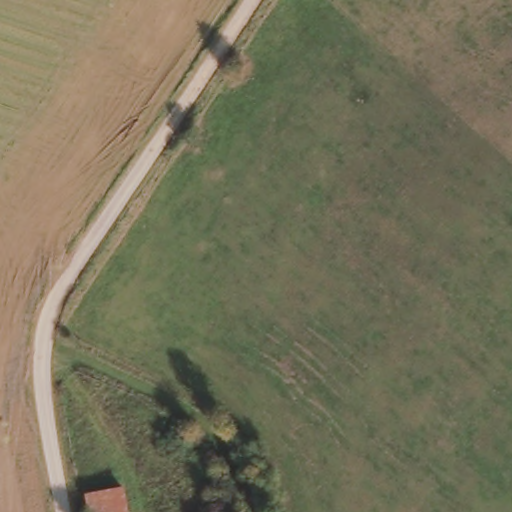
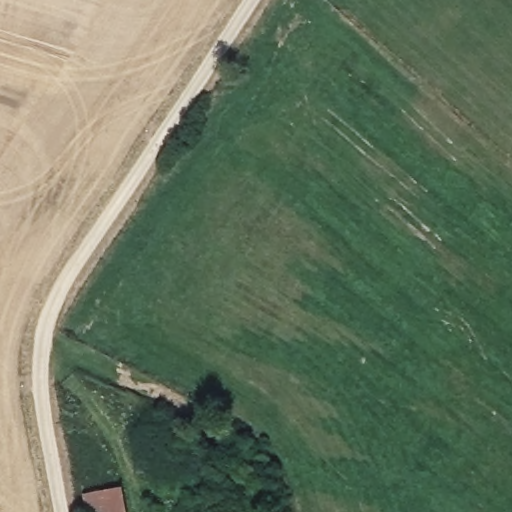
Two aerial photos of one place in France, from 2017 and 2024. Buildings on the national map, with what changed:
unchanged [(90,512),(88,498),(126,489),(128,512),(90,512)]

